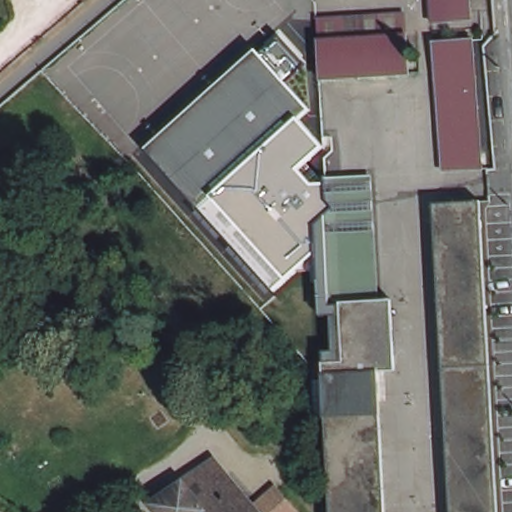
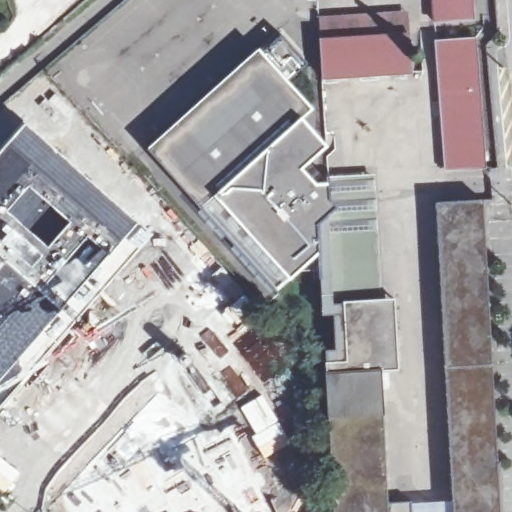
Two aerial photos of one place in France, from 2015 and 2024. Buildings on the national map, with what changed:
unchanged [(475,17),(435,20),(433,0),(474,0),(475,17)]
unchanged [(317,19),(403,13),(406,38),(318,44),(317,19)]
unchanged [(482,37),(490,167),(452,172),(437,47),(482,37)]
unchanged [(406,38),(408,77),(321,82),(318,44),(406,38)]
unchanged [(147,149),(257,50),(263,57),(280,41),(302,67),(285,81),(311,109),(300,119),(325,147),(300,169),(314,184),(326,182),(326,178),(374,175),(380,299),(348,300),(351,359),(344,360),(330,361),(331,352),(335,352),(332,314),(321,314),(317,270),(297,270),(286,279),(274,290),(147,149)]
new [(138,219),(60,307),(0,256),(0,145),(24,119),(138,219)]
unchanged [(442,231),(442,202),(489,200),(497,361),(505,508),(505,512),(467,512),(451,230),(442,231)]
new [(138,219),(152,232),(35,368),(0,405),(0,256),(60,307),(138,219)]
unchanged [(467,512),(458,512),(442,231),(451,230),(467,512)]
unchanged [(339,501),(336,460),(333,418),(324,418),(321,378),(331,378),(331,372),(330,361),(344,360),(351,359),(348,300),(389,298),(392,354),(392,370),(385,370),(393,512),(340,512),(340,510),(339,501)]
demolished [(511,391),(506,390),(507,361),(512,361),(512,391),(511,391)]
new [(4,494),(0,491),(0,456),(23,472),(4,494)]
unchanged [(216,512),(167,512),(157,501),(187,482),(187,479),(221,457),(262,503),(281,484),(302,509),(299,512),(219,512),(218,510),(216,512)]
unchanged [(219,512),(216,512),(218,510),(219,512)]

